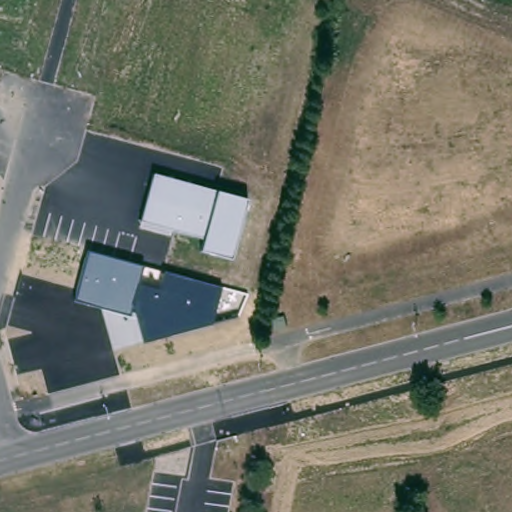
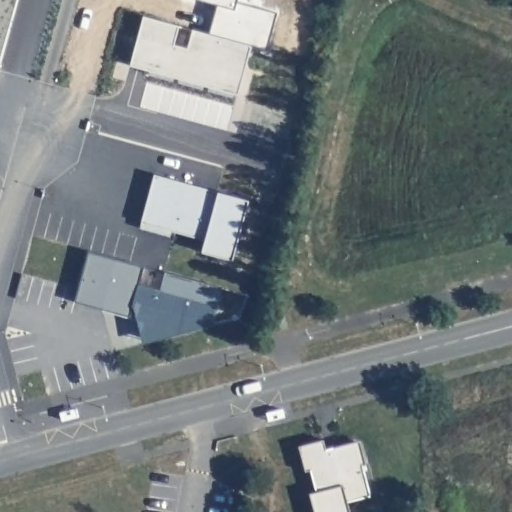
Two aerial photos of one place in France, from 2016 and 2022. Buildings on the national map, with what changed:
new [(237,92),(131,63),(143,15),(176,24),(172,43),(187,47),(193,29),(250,45),(237,92)]
unchanged [(142,221),(153,174),(217,192),(247,200),(231,259),(201,251),(204,239),(172,230),(170,237),(139,229),(142,221)]
unchanged [(87,252),(143,267),(139,285),(157,291),(163,272),(221,286),(212,325),(142,343),(133,303),(130,315),(74,300),(87,252)]
new [(346,499),(349,512),(315,512),(309,493),(316,491),(309,467),(304,467),(299,445),(322,440),(324,447),(359,440),(365,462),(362,462),(370,493),(346,499)]

